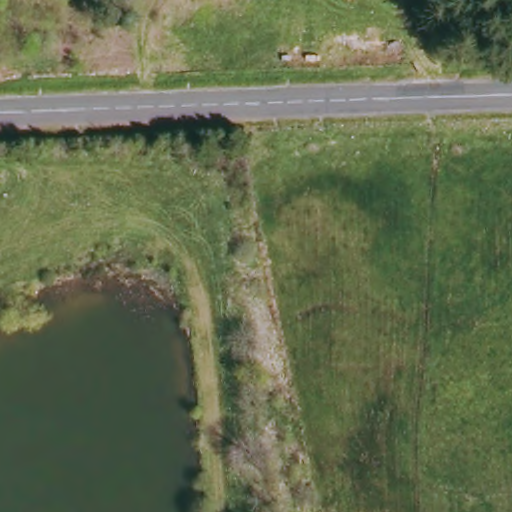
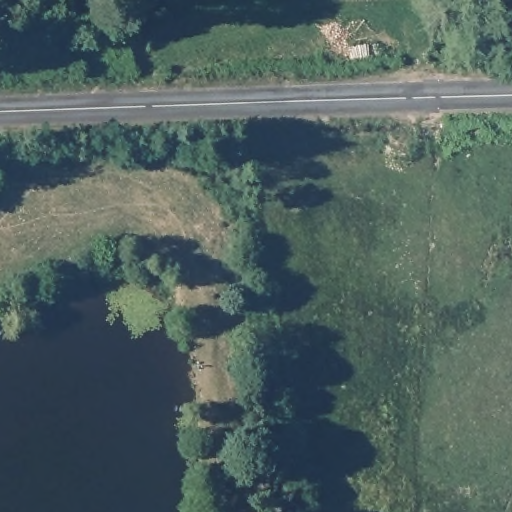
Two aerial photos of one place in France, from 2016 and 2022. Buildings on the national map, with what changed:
[]

